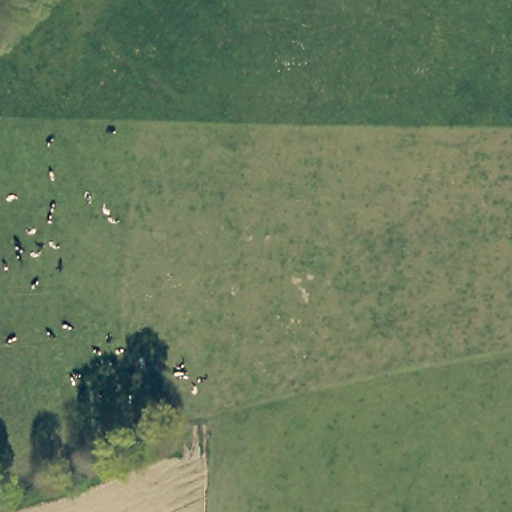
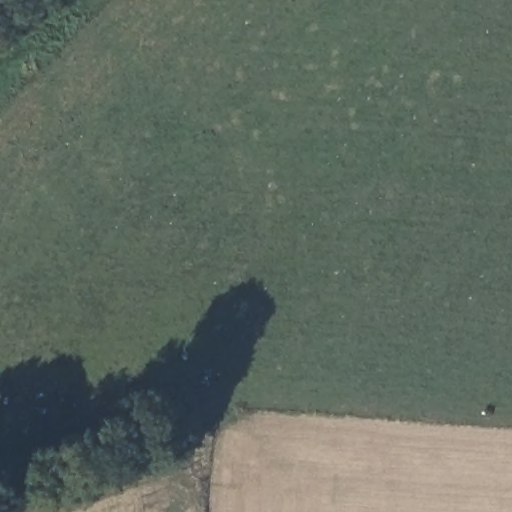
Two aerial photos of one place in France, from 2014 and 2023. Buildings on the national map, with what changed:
[]

